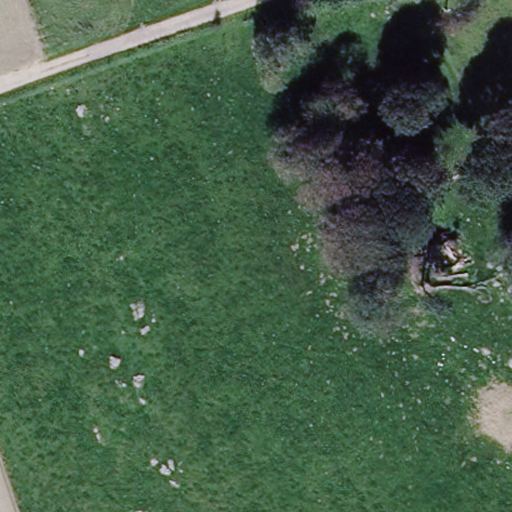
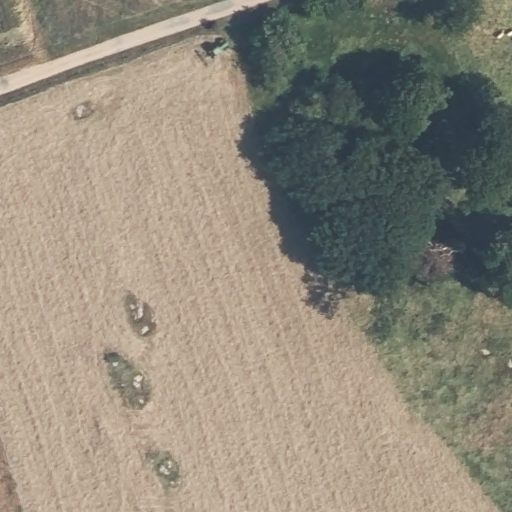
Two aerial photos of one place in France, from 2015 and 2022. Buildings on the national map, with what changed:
[]

